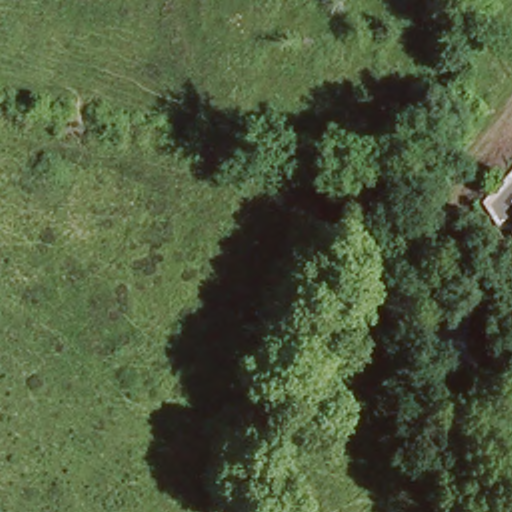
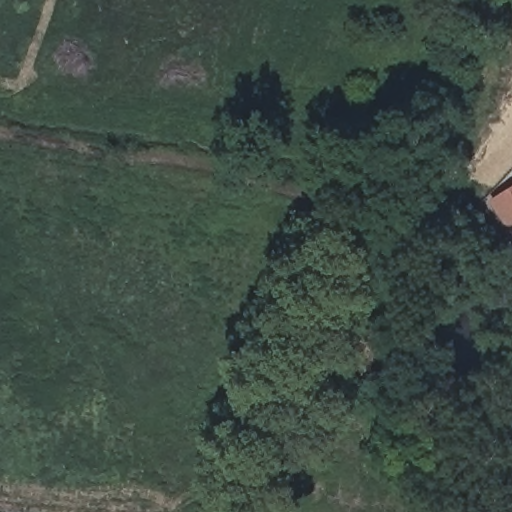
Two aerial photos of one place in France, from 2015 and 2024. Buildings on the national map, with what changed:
unchanged [(512,222),(512,230),(508,225),(512,222)]

